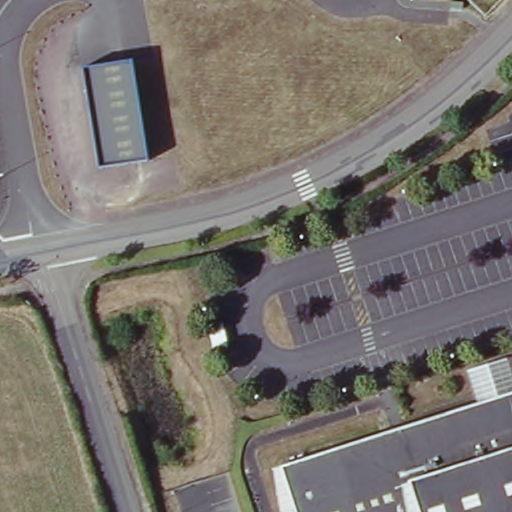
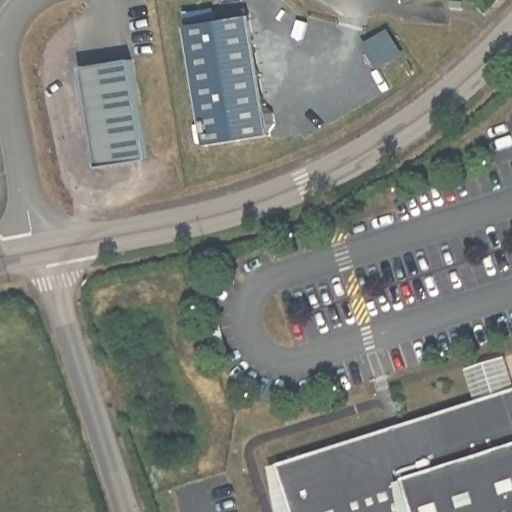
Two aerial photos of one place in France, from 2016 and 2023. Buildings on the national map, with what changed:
new [(250,19),(265,110),(274,116),(276,127),(270,136),(270,138),(207,149),(186,30),(250,19)]
unchanged [(135,62),(152,160),(97,167),(82,69),(135,62)]
new [(512,390),(512,397),(476,408),(465,377),(503,363),(512,390)]
unchanged [(512,512),(280,512),(271,470),(512,396),(512,512)]

